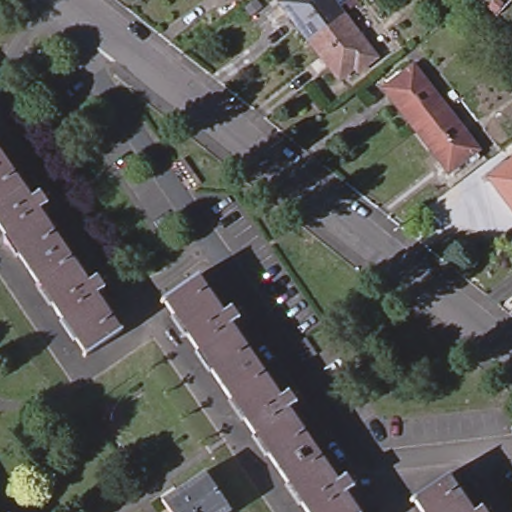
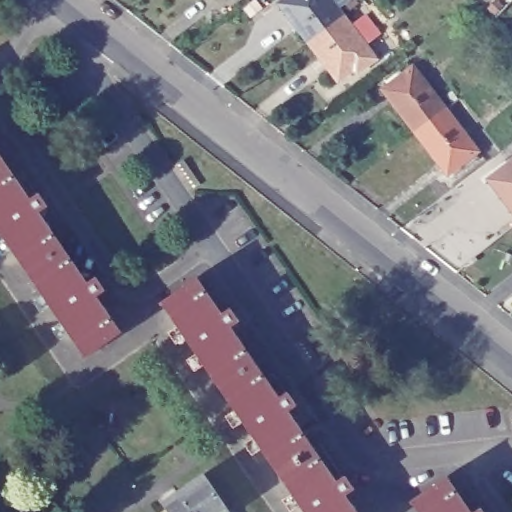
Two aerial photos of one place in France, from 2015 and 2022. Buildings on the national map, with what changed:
unchanged [(307,40),(277,1),(278,0),(328,0),(340,15),(307,40)]
unchanged [(372,59),(359,70),(355,65),(336,80),(307,40),(340,15),(372,59)]
unchanged [(380,87),(410,64),(443,107),(413,130),(380,87)]
unchanged [(475,149),(445,172),(413,130),(443,107),(475,149)]
unchanged [(512,156),(512,211),(485,176),(512,156)]
unchanged [(34,194),(33,193),(35,191),(45,206),(43,208),(42,206),(36,210),(84,282),(90,277),(90,276),(92,275),(101,288),(99,290),(98,288),(92,292),(115,327),(117,326),(119,330),(82,355),(80,351),(82,350),(0,229),(0,159),(27,199),(34,194)]
unchanged [(160,301),(158,298),(194,273),(197,277),(195,278),(217,312),(224,308),(223,306),(225,305),(235,320),(234,321),(232,319),(225,323),(275,397),(281,393),(280,391),(283,390),(292,403),(290,405),(289,403),(282,408),(331,480),(338,475),(337,475),(340,473),(350,487),(347,489),(346,487),(339,492),(353,512),(306,512),(162,300),(160,301)]
unchanged [(410,496),(407,493),(446,467),(447,470),(445,471),(470,507),(477,501),(476,500),(479,498),(488,512),(423,512),(412,495),(410,496)]
unchanged [(160,500),(203,471),(229,509),(224,512),(168,512),(160,500)]
unchanged [(7,512),(6,512),(7,511),(7,512)]

